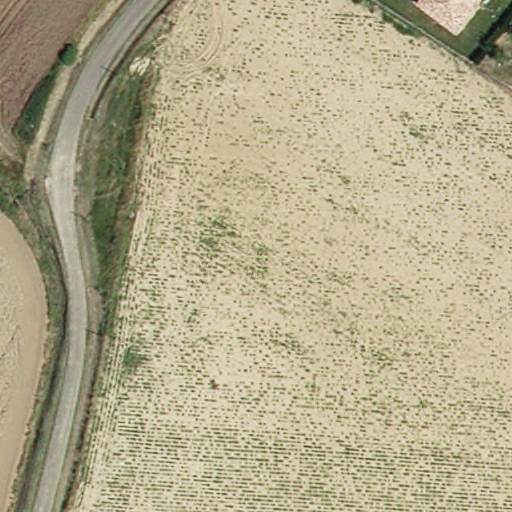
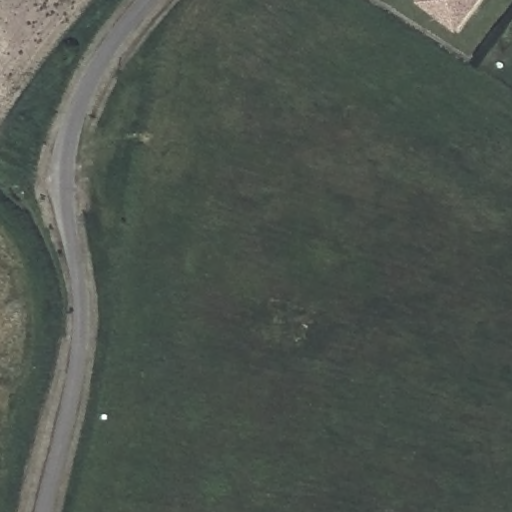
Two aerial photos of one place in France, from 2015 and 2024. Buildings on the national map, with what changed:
unchanged [(478,0),(453,31),(415,1),(416,0),(478,0)]

